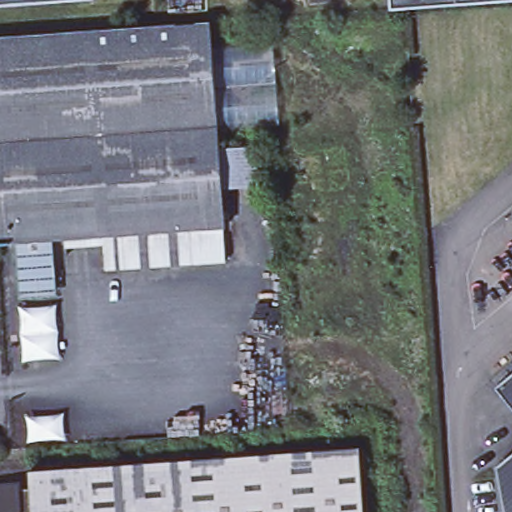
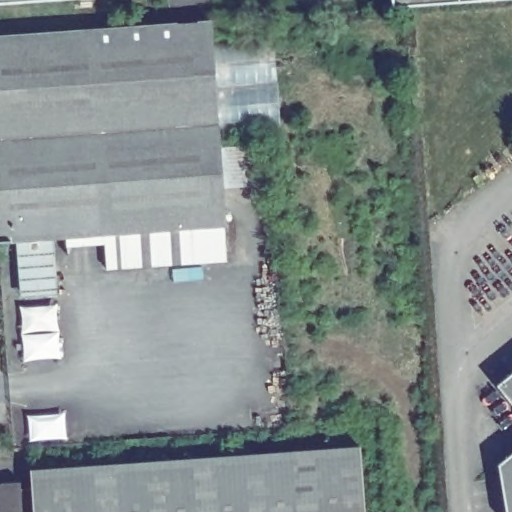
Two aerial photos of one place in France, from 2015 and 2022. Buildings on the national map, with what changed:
unchanged [(0,3),(0,0),(40,0),(0,3)]
unchanged [(391,0),(488,0),(392,7),(391,0)]
unchanged [(272,42),(277,83),(222,82),(225,147),(262,143),(267,186),(227,187),(232,263),(108,272),(108,254),(71,257),(70,239),(57,241),(65,298),(22,305),(12,244),(0,243),(0,36),(215,20),(216,48),(272,42)]
unchanged [(499,384),(512,373),(512,400),(499,384)]
unchanged [(364,447),(369,512),(37,512),(35,484),(34,471),(364,447)]
unchanged [(508,512),(500,466),(512,455),(512,512),(508,512)]
unchanged [(37,512),(0,512),(0,484),(35,484),(37,512)]

